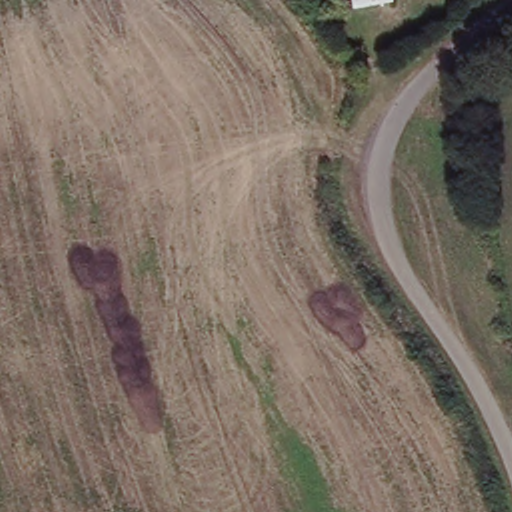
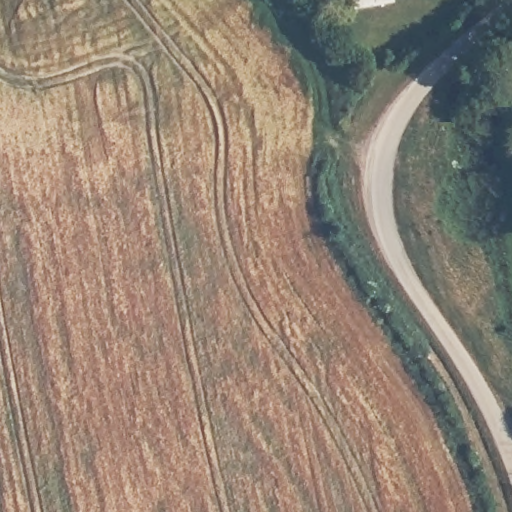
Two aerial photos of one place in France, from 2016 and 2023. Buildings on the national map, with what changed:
unchanged [(397,4),(353,13),(352,0),(397,0),(397,4)]

